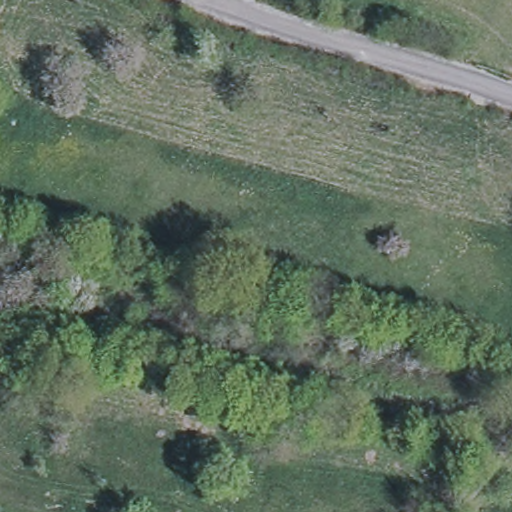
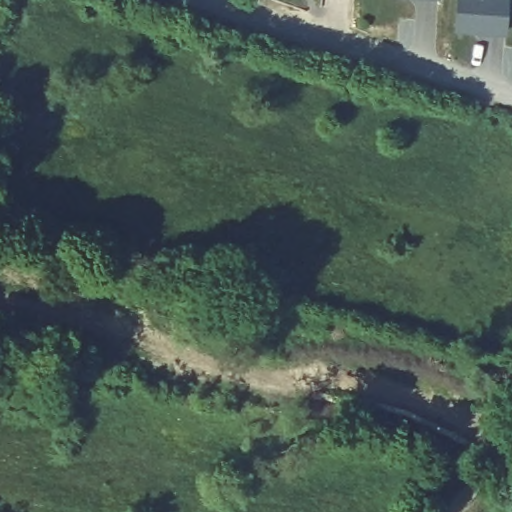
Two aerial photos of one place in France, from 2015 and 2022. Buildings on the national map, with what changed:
new [(415,0),(441,0),(440,1),(415,0)]
new [(507,0),(505,31),(457,28),(458,0),(507,0)]

